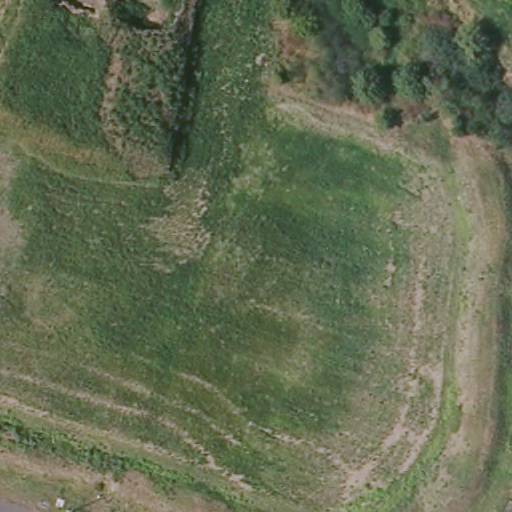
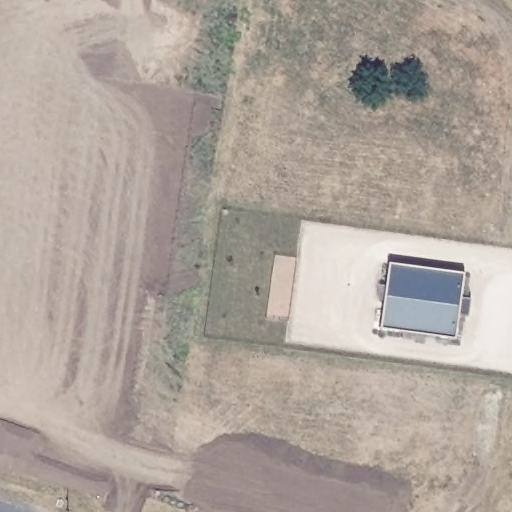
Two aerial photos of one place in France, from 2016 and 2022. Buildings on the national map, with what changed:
new [(380,330),(388,262),(464,273),(461,298),(470,299),(468,317),(458,315),(455,341),(380,330)]

